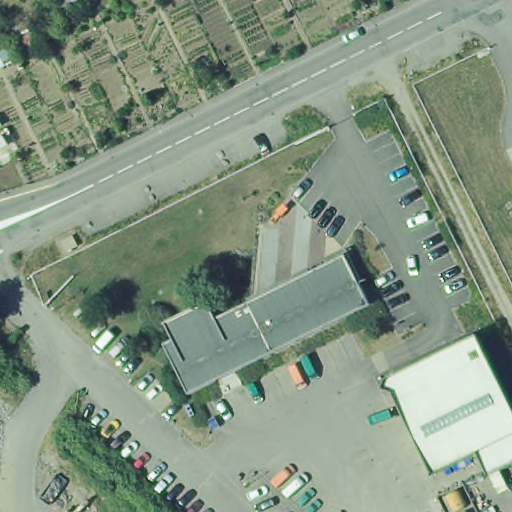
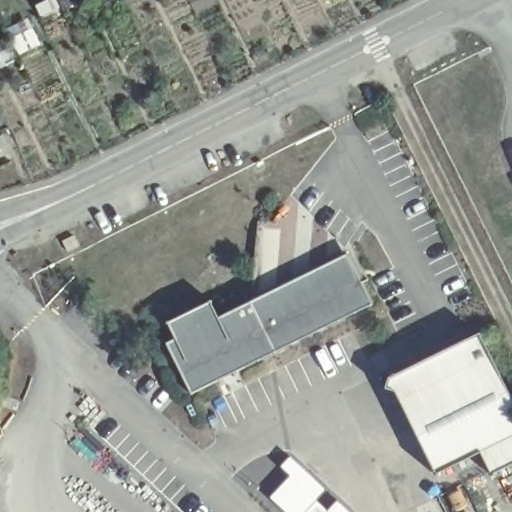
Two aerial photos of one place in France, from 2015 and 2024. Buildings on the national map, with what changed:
unchanged [(4,30),(29,18),(42,44),(21,54),(25,60),(0,73),(0,46),(10,40),(4,30)]
unchanged [(195,394),(170,344),(180,339),(172,322),(215,301),(223,318),(281,289),(284,294),(297,288),(294,282),(352,254),(363,276),(357,280),(360,285),(366,282),(377,304),(195,394)]
unchanged [(512,401),(512,437),(480,453),(435,475),(398,400),(399,399),(401,394),(384,389),(387,378),(479,334),(512,401)]
unchanged [(512,437),(512,465),(491,475),(480,453),(512,437)]
new [(279,466),(290,454),(327,489),(317,499),(327,509),(324,512),(283,512),(267,497),(287,476),(279,466)]
new [(337,499),(350,512),(324,512),(327,509),(337,499)]

